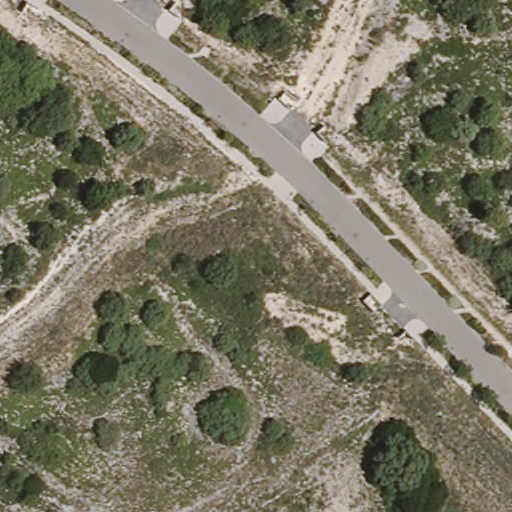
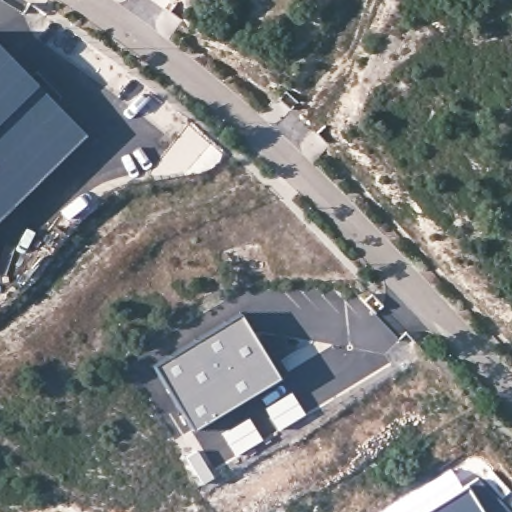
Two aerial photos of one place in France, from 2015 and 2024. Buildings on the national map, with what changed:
new [(0,219),(0,50),(84,136),(0,219)]
new [(241,315),(251,331),(280,378),(193,430),(153,365),(241,313),(241,315)]
unchanged [(512,512),(423,512),(478,478),(512,512)]

